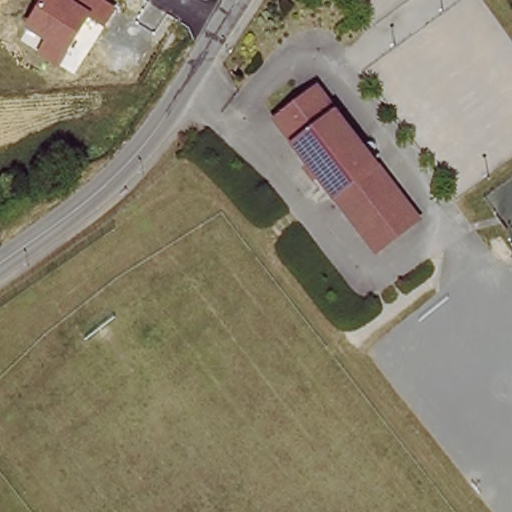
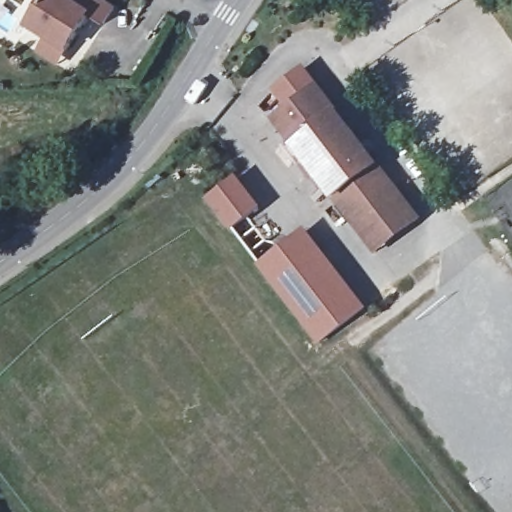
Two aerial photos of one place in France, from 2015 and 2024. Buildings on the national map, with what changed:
unchanged [(44,0),(109,0),(119,6),(107,27),(91,18),(61,67),(39,54),(48,41),(28,27),(44,0)]
unchanged [(278,119),(321,86),(398,186),(356,219),(278,119)]
new [(234,171),(262,206),(230,230),(203,197),(234,171)]
unchanged [(398,186),(423,219),(381,251),(356,219),(398,186)]
new [(306,227),(367,306),(317,343),(256,263),(306,227)]

